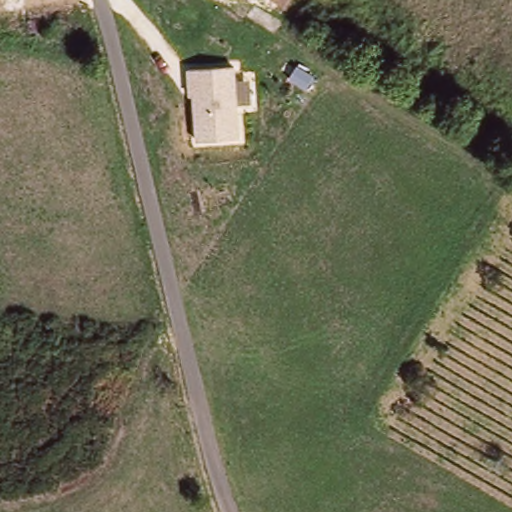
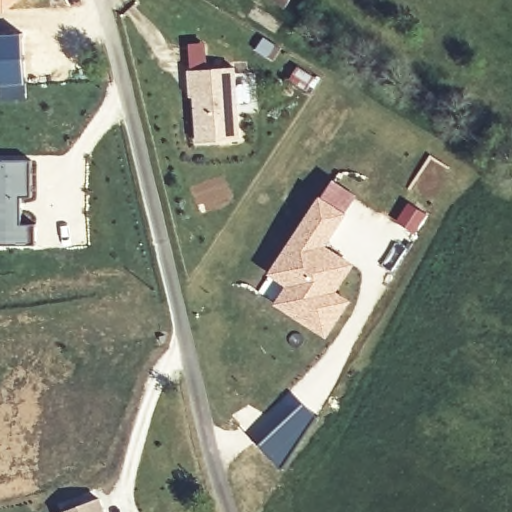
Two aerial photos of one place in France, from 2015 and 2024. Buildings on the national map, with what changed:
unchanged [(280,0),(295,0),(291,6),(280,0)]
new [(25,100),(0,101),(0,33),(22,32),(25,100)]
unchanged [(237,65),(242,140),(198,142),(195,95),(189,95),(189,69),(237,65)]
new [(20,196),(20,225),(35,226),(34,245),(0,244),(0,160),(30,160),(30,196),(20,196)]
new [(325,245),(355,262),(337,290),(352,299),(326,339),(274,304),(286,286),(268,273),(320,194),(347,214),(325,245)]
new [(106,512),(61,512),(100,496),(106,512)]

